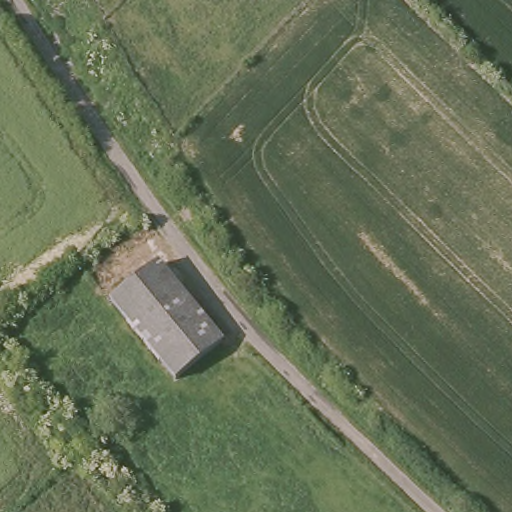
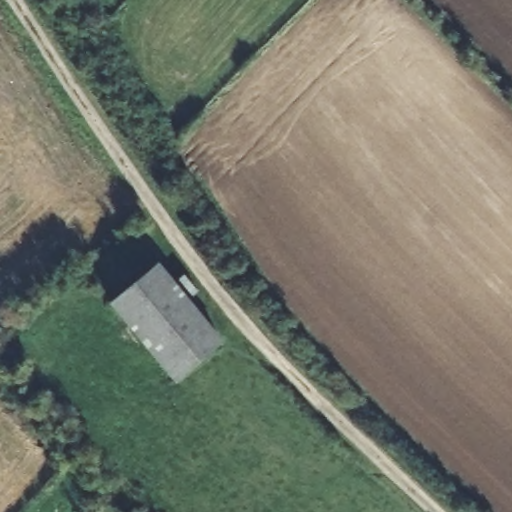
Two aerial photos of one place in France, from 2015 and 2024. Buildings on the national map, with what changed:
unchanged [(222,339),(180,376),(112,301),(155,263),(222,339)]

